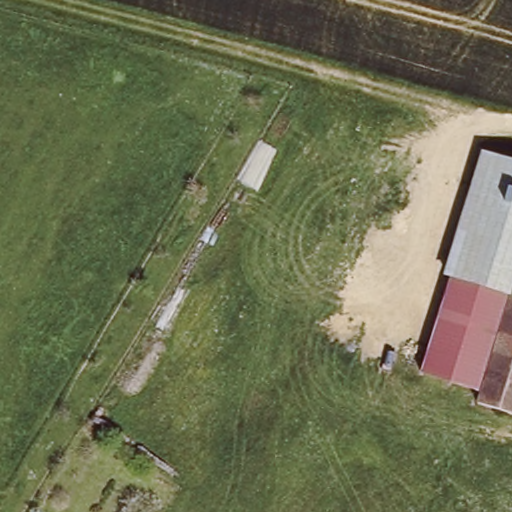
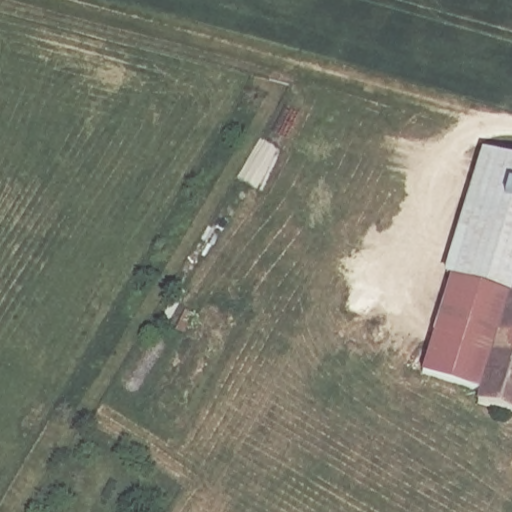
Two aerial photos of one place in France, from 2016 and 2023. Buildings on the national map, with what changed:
unchanged [(446,281),(479,172),(482,162),(512,171),(512,291),(509,301),(452,283),(446,281)]
unchanged [(509,301),(485,378),(429,361),(452,283),(509,301)]
unchanged [(483,387),(485,378),(509,301),(512,291),(512,396),(483,387)]

